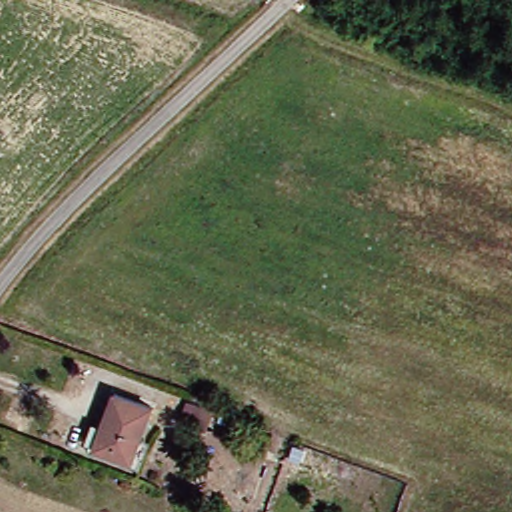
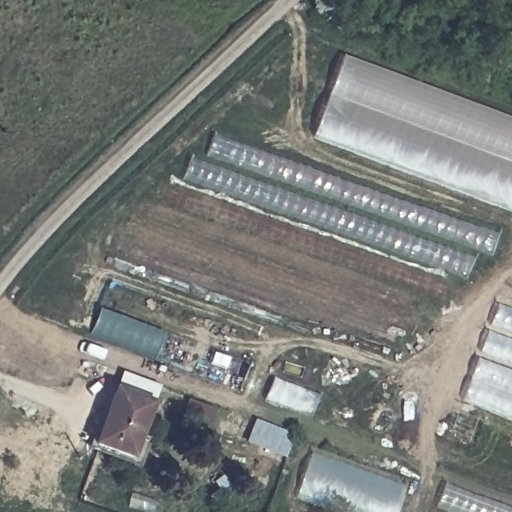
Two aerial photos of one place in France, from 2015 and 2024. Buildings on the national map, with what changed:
new [(310,139),(341,57),(512,121),(512,213),(310,139)]
new [(490,257),(473,251),(465,279),(179,181),(187,158),(202,164),(211,135),(496,236),(490,257)]
new [(460,402),(495,305),(512,312),(512,422),(460,402)]
new [(150,363),(87,337),(97,310),(162,335),(150,363)]
new [(309,420),(260,402),(270,379),(316,396),(309,420)]
unchanged [(95,446),(114,391),(151,404),(131,458),(95,446)]
new [(248,442),(257,420),(295,435),(285,458),(248,442)]
new [(393,512),(331,512),(293,498),(308,452),(402,487),(393,512)]
new [(432,508),(441,483),(512,510),(512,512),(442,512),(432,508)]

